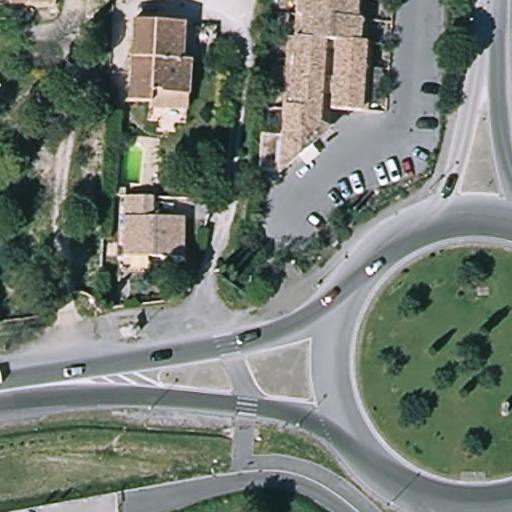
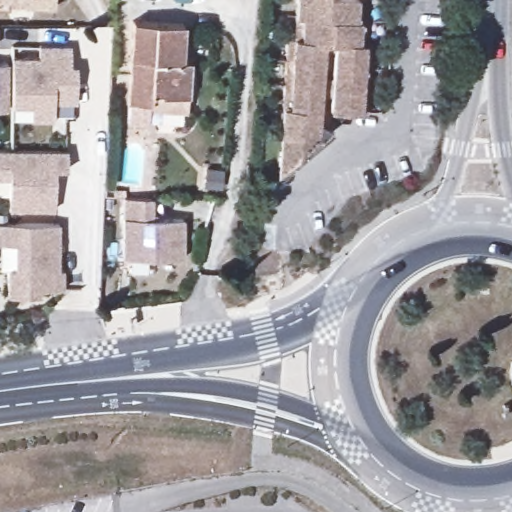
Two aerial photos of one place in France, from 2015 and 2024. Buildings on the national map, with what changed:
unchanged [(0,4),(0,0),(58,0),(58,5),(0,4)]
unchanged [(322,144),(283,177),(293,41),(299,41),(302,0),(333,0),(330,44),(322,144)]
unchanged [(367,0),(366,21),(371,22),(371,45),(376,46),(372,116),(336,113),(339,44),(330,44),(333,0),(367,0)]
unchanged [(184,62),(191,64),(192,112),(163,111),(164,95),(155,95),(154,107),(128,106),(133,25),(184,26),(184,62)]
new [(11,58),(38,58),(38,46),(70,47),(70,67),(76,67),(76,102),(53,102),(53,120),(31,120),(31,107),(11,107),(11,58)]
new [(7,110),(0,110),(0,64),(7,64),(7,110)]
new [(66,170),(54,170),(54,210),(8,210),(9,179),(0,179),(0,151),(67,152),(66,170)]
unchanged [(125,257),(128,218),(129,197),(155,198),(154,220),(186,222),(185,261),(125,257)]
new [(58,270),(63,270),(63,289),(39,289),(39,295),(8,295),(8,270),(15,270),(15,244),(0,243),(0,223),(58,224),(58,270)]

